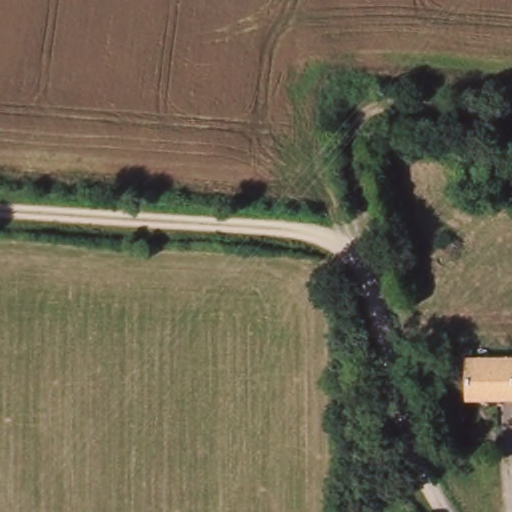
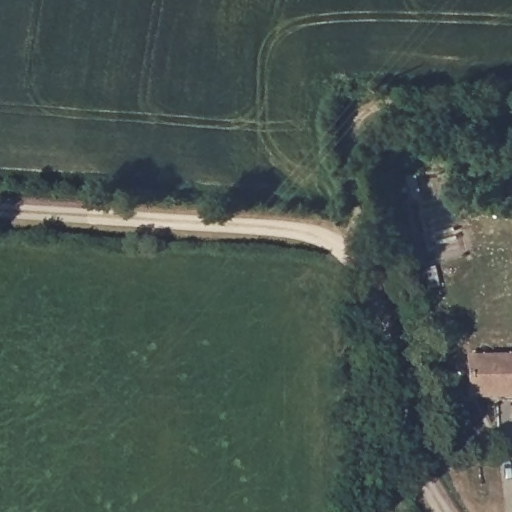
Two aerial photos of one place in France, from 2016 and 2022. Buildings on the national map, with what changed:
unchanged [(471,182),(471,166),(486,167),(486,182),(471,182)]
unchanged [(465,395),(465,359),(512,358),(512,394),(465,395)]

